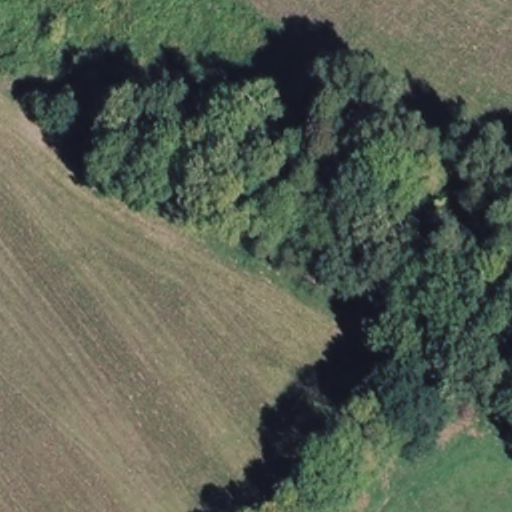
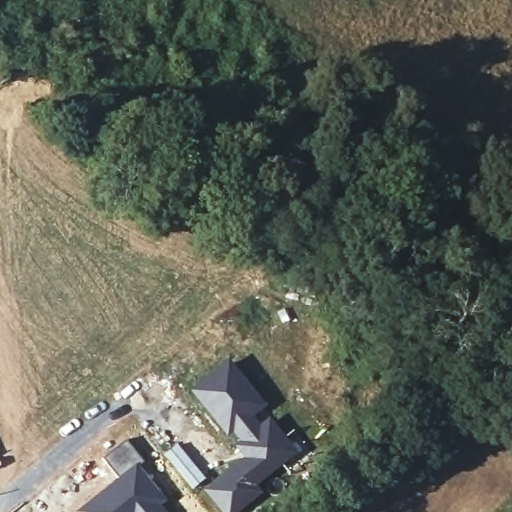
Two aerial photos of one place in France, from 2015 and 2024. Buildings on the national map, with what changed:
new [(253,417),(261,426),(270,418),(298,453),(257,485),(263,494),(239,512),(222,512),(205,490),(246,458),(235,446),(241,442),(234,432),(227,437),(192,390),(230,362),(267,406),(253,417)]
new [(102,458),(126,440),(143,460),(138,463),(167,500),(162,505),(167,512),(75,512),(75,511),(117,477),(102,458)]
new [(176,443),(205,478),(193,488),(165,454),(176,443)]

